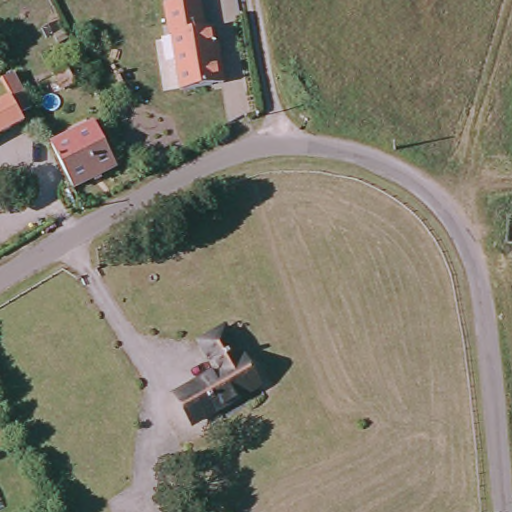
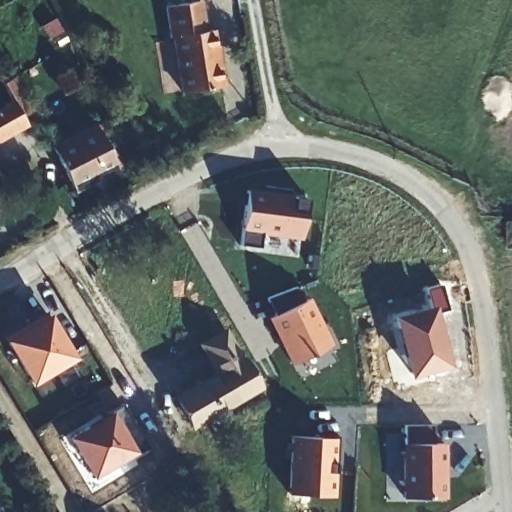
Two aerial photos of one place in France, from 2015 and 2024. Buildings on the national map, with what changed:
unchanged [(173,38),(168,39),(163,6),(194,0),(197,0),(202,29),(210,28),(215,60),(217,60),(222,87),(181,94),(173,38)]
unchanged [(73,86),(63,90),(55,75),(65,70),(73,86)]
unchanged [(20,88),(27,103),(17,110),(20,116),(0,127),(0,99),(20,88)]
unchanged [(47,140),(90,120),(109,162),(68,183),(47,140)]
new [(248,187),(307,197),(302,237),(262,231),(260,246),(241,243),(248,187)]
new [(512,217),(512,244),(507,244),(508,217),(512,217)]
new [(393,315),(432,305),(427,287),(442,283),(447,308),(436,309),(452,366),(410,377),(393,315)]
new [(269,317),(275,314),(267,298),(297,286),(303,299),(310,295),(333,344),(292,363),(269,317)]
new [(30,386),(2,340),(48,313),(76,358),(30,386)]
unchanged [(245,364),(260,389),(192,428),(177,403),(222,376),(213,362),(206,349),(225,339),(232,350),(242,366),(245,364)]
new [(68,436),(112,410),(122,403),(147,445),(137,451),(92,477),(68,436)]
new [(402,442),(404,424),(433,424),(433,443),(445,444),(445,497),(403,498),(402,442)]
new [(333,497),(290,495),(292,436),(336,438),(333,497)]

